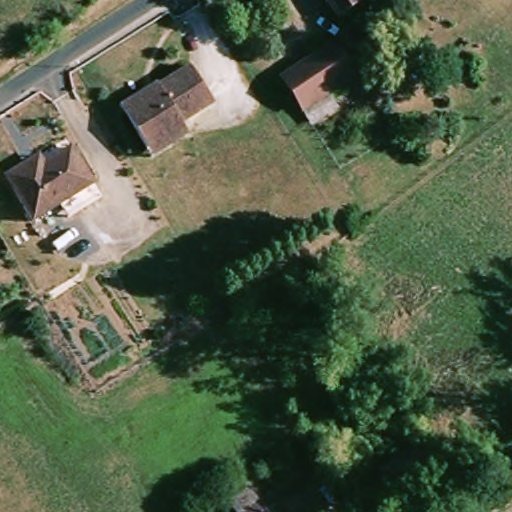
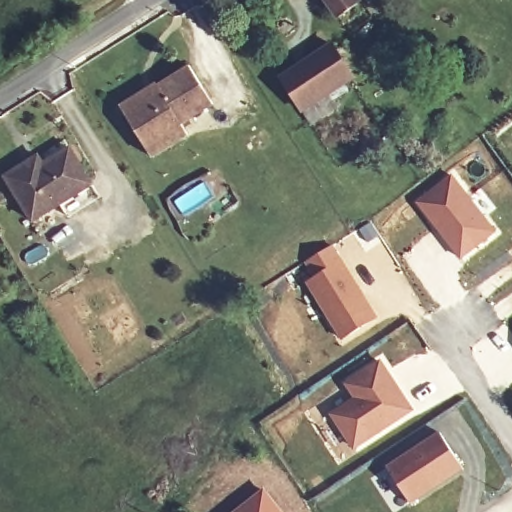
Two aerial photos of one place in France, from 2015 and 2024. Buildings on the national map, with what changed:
unchanged [(321,0),(355,0),(356,2),(334,18),(321,0)]
unchanged [(329,95),(335,106),(310,122),(282,78),(332,45),(354,79),(329,95)]
unchanged [(140,152),(119,118),(115,111),(152,89),(155,95),(153,90),(185,71),(208,110),(177,129),(183,140),(147,163),(140,152)]
unchanged [(64,218),(56,205),(28,222),(0,177),(20,165),(34,157),(39,165),(65,149),(88,185),(95,198),(64,218)]
new [(452,174),(497,231),(460,260),(414,201),(452,174)]
new [(333,244),(379,318),(340,341),(304,282),(310,278),(302,263),(333,244)]
new [(351,397),(341,382),(381,358),(415,411),(354,452),(328,413),(351,397)]
unchanged [(392,489),(380,473),(422,444),(434,460),(392,489)]
unchanged [(224,508),(244,494),(257,512),(226,512),(224,508)]

